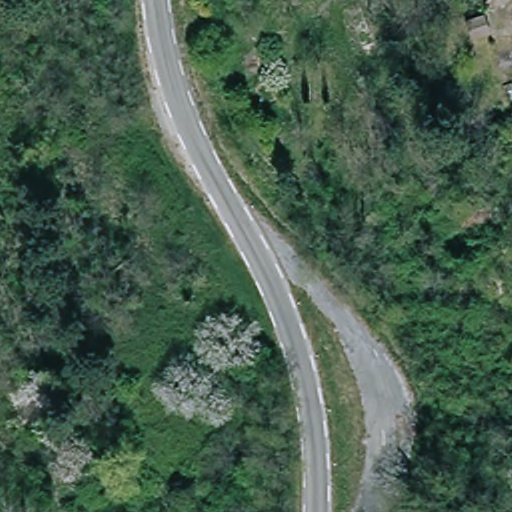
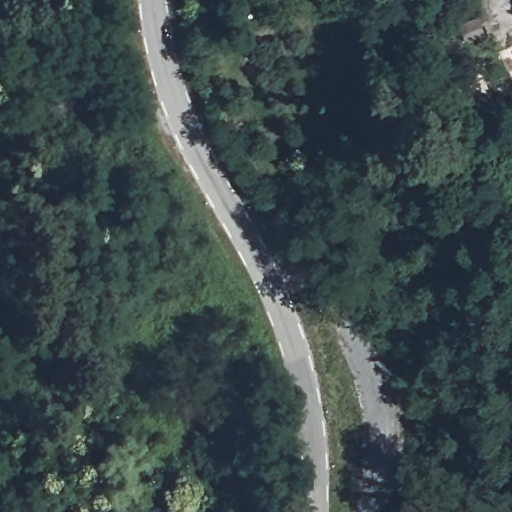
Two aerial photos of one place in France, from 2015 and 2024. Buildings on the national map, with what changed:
unchanged [(490,28),(464,39),(460,26),(484,16),(490,28)]

